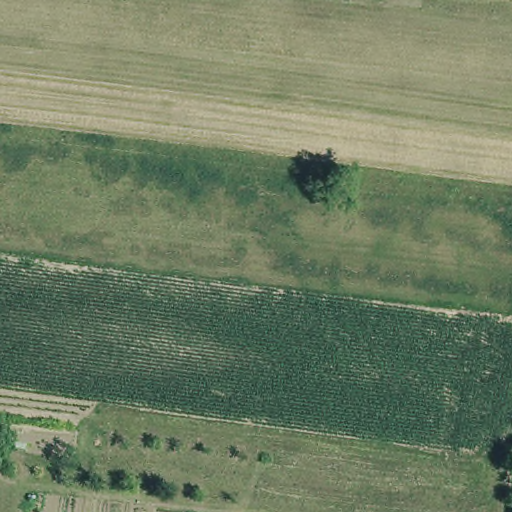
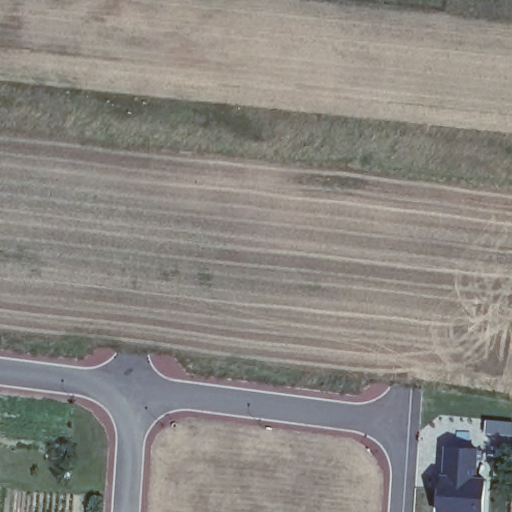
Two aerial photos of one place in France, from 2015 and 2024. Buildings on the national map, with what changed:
new [(475,451),(475,477),(487,478),(485,512),(435,512),(436,477),(447,477),(447,448),(475,451)]

